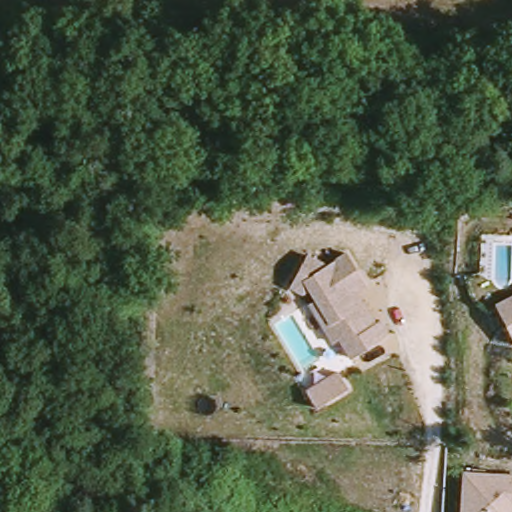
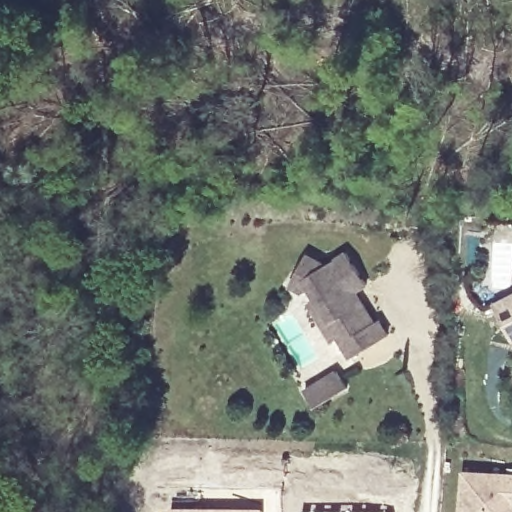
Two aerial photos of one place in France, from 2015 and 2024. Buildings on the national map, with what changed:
unchanged [(305,305),(312,300),(306,291),(301,294),(299,295),(286,287),(303,257),(323,267),(343,255),(363,287),(352,294),(358,305),(371,325),(375,323),(384,337),(347,360),(335,339),(328,343),(305,305)]
unchanged [(512,294),(512,336),(495,301),(512,294)]
unchanged [(304,387),(338,367),(350,387),(315,407),(304,387)]
unchanged [(512,471),(512,512),(460,512),(462,468),(512,471)]
new [(262,508),(262,512),(170,512),(170,507),(262,508)]
new [(391,512),(309,512),(308,510),(391,511),(391,512)]

